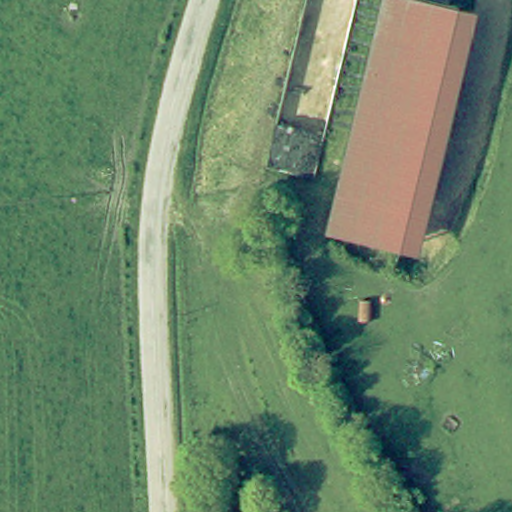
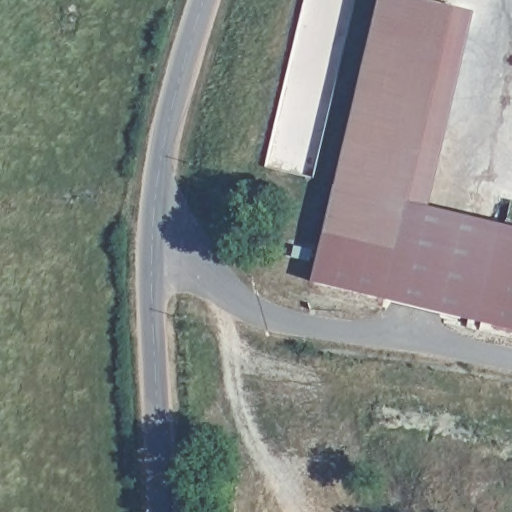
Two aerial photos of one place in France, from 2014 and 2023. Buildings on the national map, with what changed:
unchanged [(386,0),(413,0),(461,12),(400,256),(326,237),(386,0)]
unchanged [(476,16),(430,206),(415,260),(400,256),(461,12),(476,16)]
new [(512,226),(512,326),(317,280),(326,237),(400,256),(415,260),(430,206),(512,226)]

